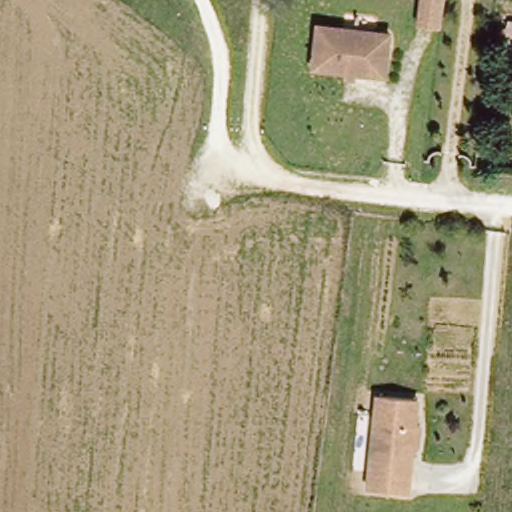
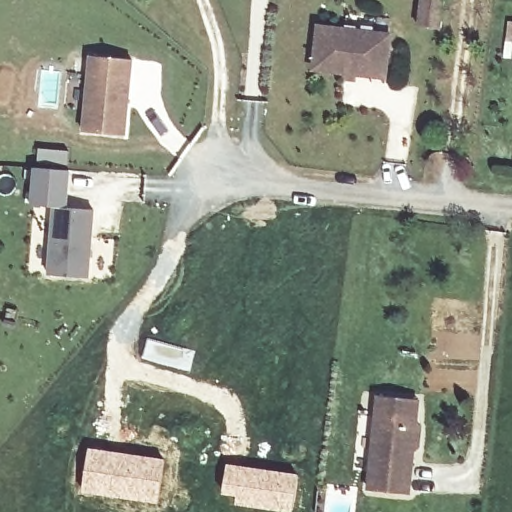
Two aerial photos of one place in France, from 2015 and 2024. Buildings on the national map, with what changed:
unchanged [(441,26),(418,22),(421,0),(444,0),(441,26)]
unchanged [(369,71),(312,64),(318,21),(390,30),(387,54),(384,73),(369,71)]
unchanged [(506,23),(512,23),(512,60),(502,59),(506,23)]
new [(126,137),(82,133),(89,56),(133,60),(126,137)]
new [(89,279),(47,275),(52,207),(27,206),(29,169),(64,172),(64,206),(95,210),(89,279)]
unchanged [(369,486),(378,392),(418,395),(416,420),(421,421),(419,442),(413,447),(409,490),(369,486)]
new [(87,446),(165,458),(158,504),(80,492),(87,446)]
new [(299,473),(294,512),(281,512),(233,504),(234,497),(220,494),(225,462),(299,473)]

